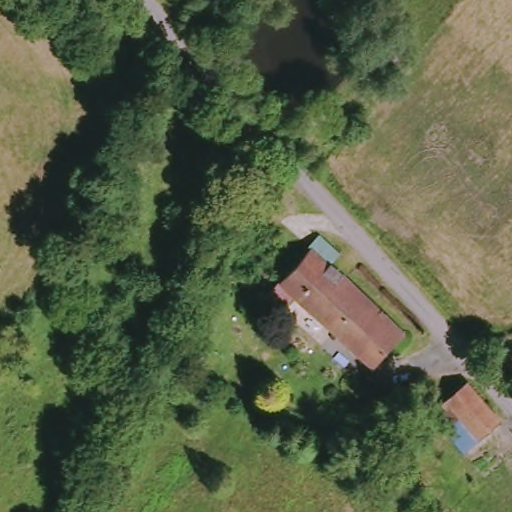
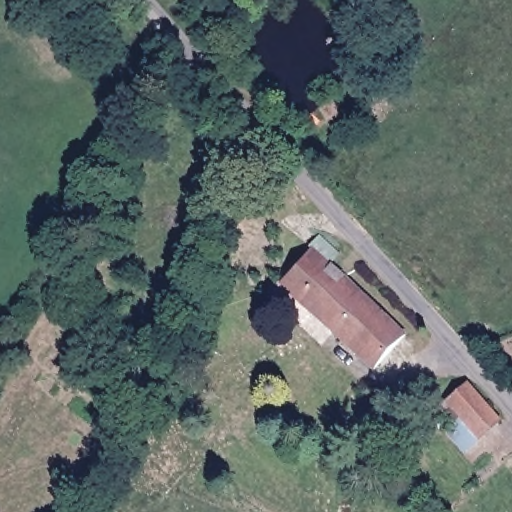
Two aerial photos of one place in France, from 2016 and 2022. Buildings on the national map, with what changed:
unchanged [(290,279),(316,250),(318,252),(327,240),(346,256),(336,267),(413,333),(383,365),(302,297),(293,308),(277,292),(290,279)]
unchanged [(503,424),(468,449),(437,411),(472,384),(503,424)]

